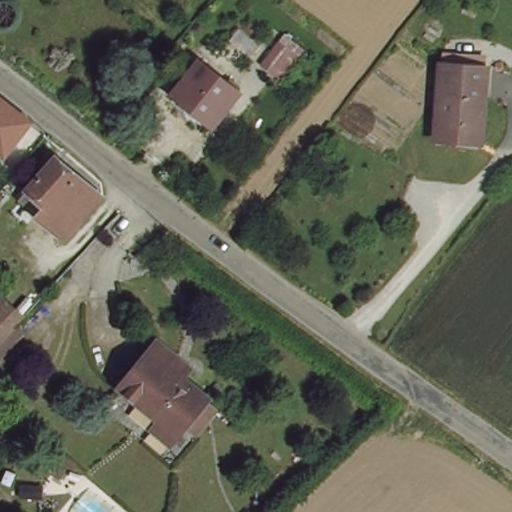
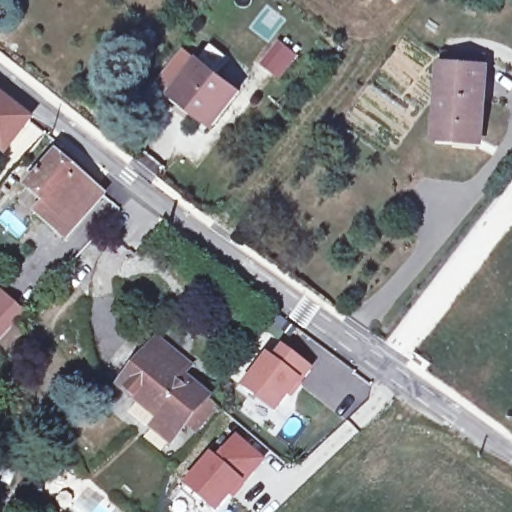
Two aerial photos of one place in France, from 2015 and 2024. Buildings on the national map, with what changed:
unchanged [(260,64),(279,40),(297,55),(280,79),(260,64)]
unchanged [(461,141),(436,139),(442,63),(445,63),(445,53),(485,57),(484,67),(486,67),(481,131),(480,142),(461,141)]
unchanged [(172,94),(200,60),(240,92),(212,126),(172,94)]
unchanged [(0,157),(0,107),(25,126),(0,157)]
unchanged [(29,191),(27,190),(57,156),(104,197),(65,240),(35,214),(37,212),(22,199),(29,191)]
unchanged [(0,292),(25,315),(15,326),(21,331),(0,354),(0,292)]
unchanged [(196,433),(185,424),(171,441),(153,427),(160,419),(121,386),(150,351),(158,341),(190,366),(181,377),(207,398),(206,399),(216,408),(196,433)]
new [(262,356),(268,360),(278,347),(307,369),(296,382),(294,381),(271,411),(239,387),(262,356)]
new [(260,460),(240,484),(237,482),(213,511),(182,485),(208,455),(213,459),(233,437),(260,460)]

